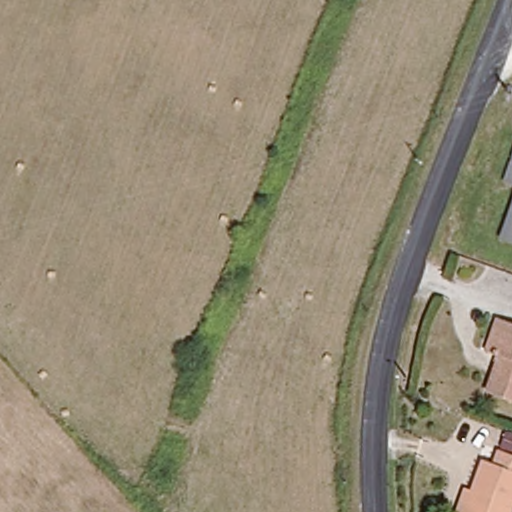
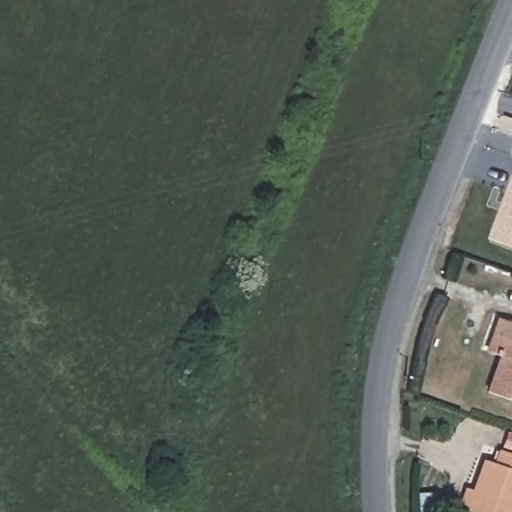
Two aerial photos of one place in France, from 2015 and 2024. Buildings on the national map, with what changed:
new [(512,191),(512,247),(493,240),(512,191)]
demolished [(503,235),(512,208),(512,239),(503,235)]
unchanged [(482,390),(495,354),(481,350),(493,316),(507,320),(512,322),(512,401),(482,390)]
unchanged [(500,429),(512,433),(512,457),(504,453),(499,467),(488,463),(500,429)]
unchanged [(470,491),(477,493),(488,463),(499,467),(504,453),(512,457),(512,512),(462,512),(470,491)]

